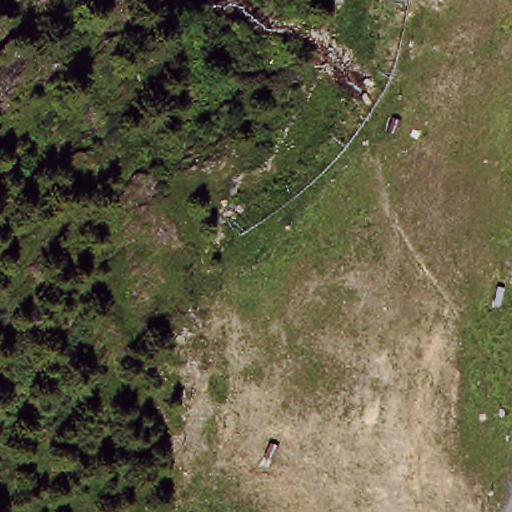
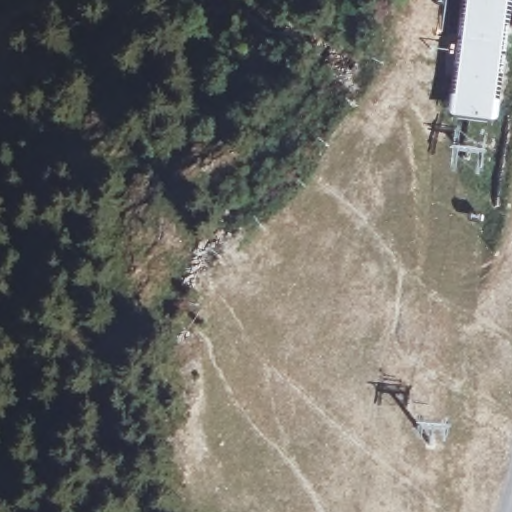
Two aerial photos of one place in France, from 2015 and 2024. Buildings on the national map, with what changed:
new [(449,117),(462,0),(512,0),(512,13),(498,122),(449,117)]

